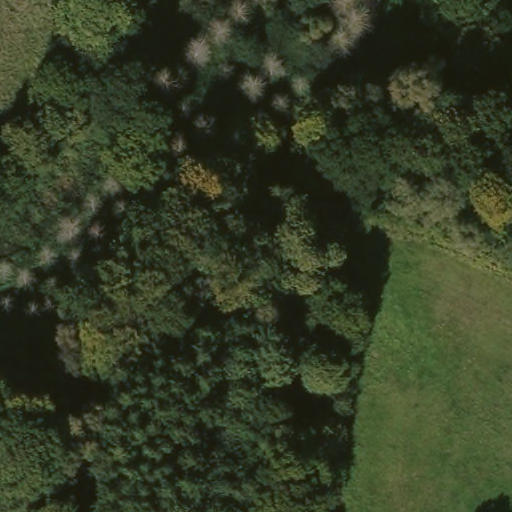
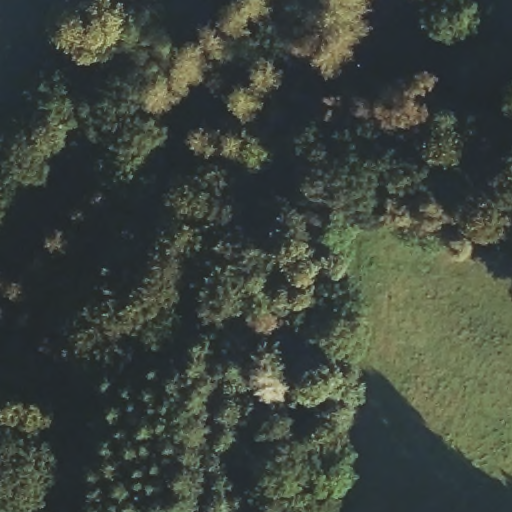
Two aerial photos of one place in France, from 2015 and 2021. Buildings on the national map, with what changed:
[]

